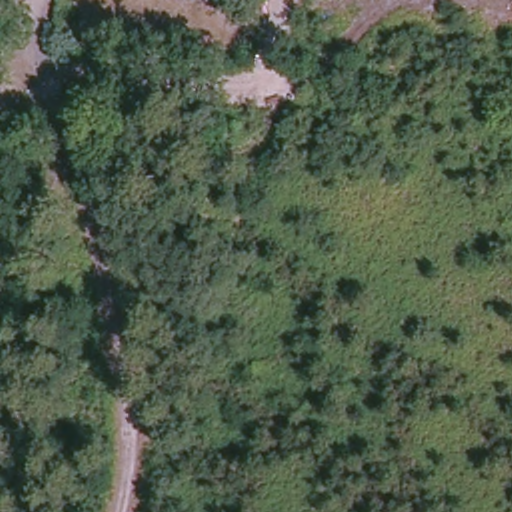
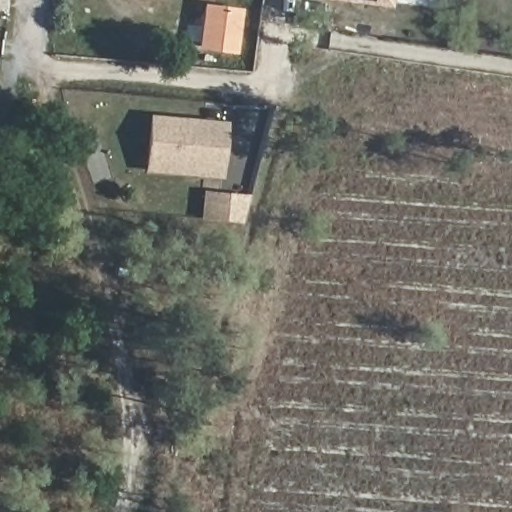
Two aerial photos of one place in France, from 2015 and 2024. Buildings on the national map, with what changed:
new [(334,0),(393,0),(392,8),(334,0)]
new [(237,54),(197,49),(203,4),(242,9),(237,54)]
new [(145,172),(151,115),(228,122),(222,179),(145,172)]
new [(242,223),(201,219),(203,190),(251,194),(242,223)]

